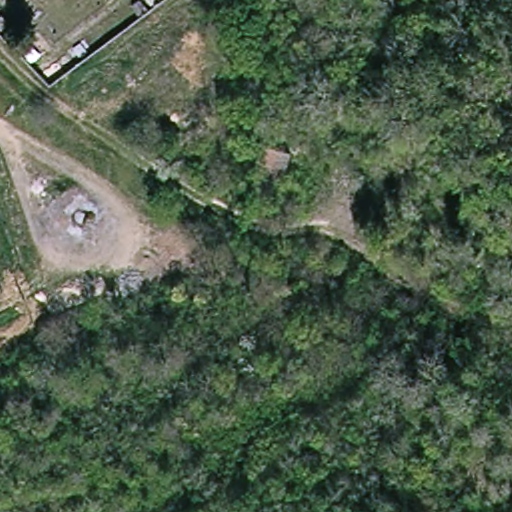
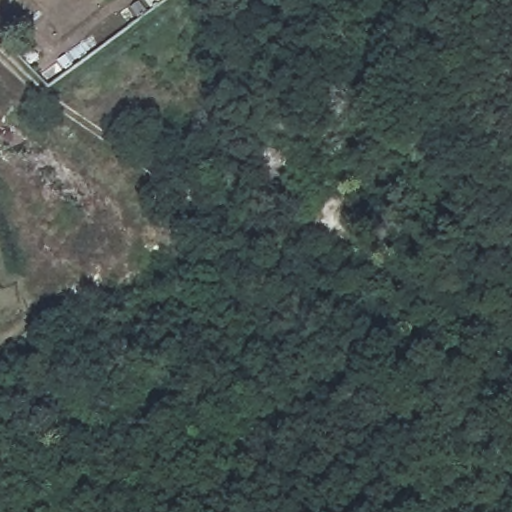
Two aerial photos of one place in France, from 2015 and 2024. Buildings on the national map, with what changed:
unchanged [(257,140),(286,149),(278,178),(271,199),(242,191),(254,151),(257,140)]

